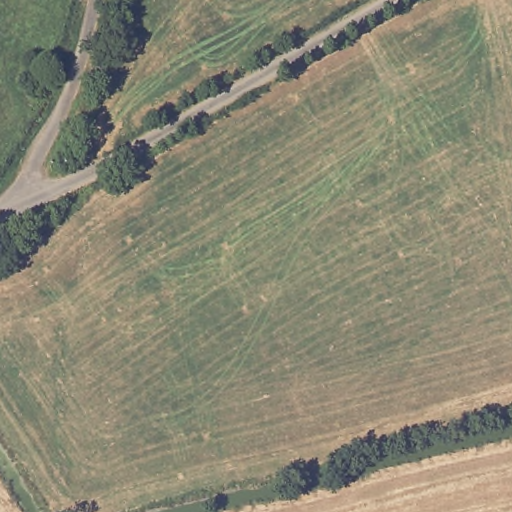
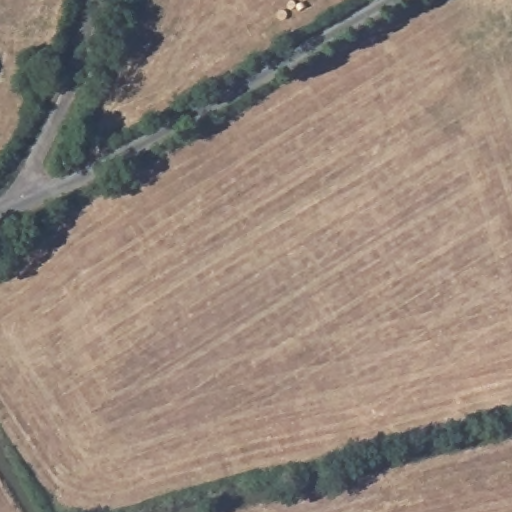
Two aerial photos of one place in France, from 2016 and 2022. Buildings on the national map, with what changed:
[]

